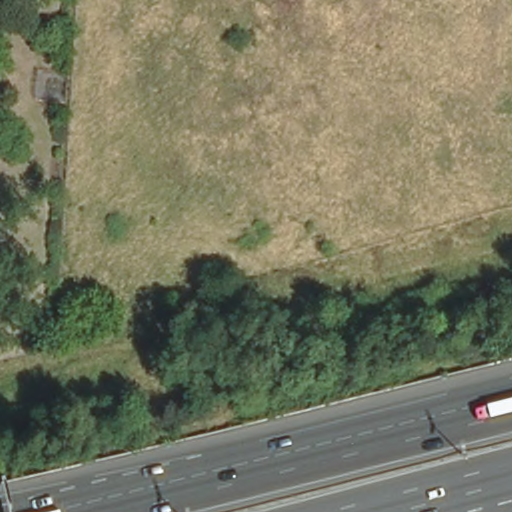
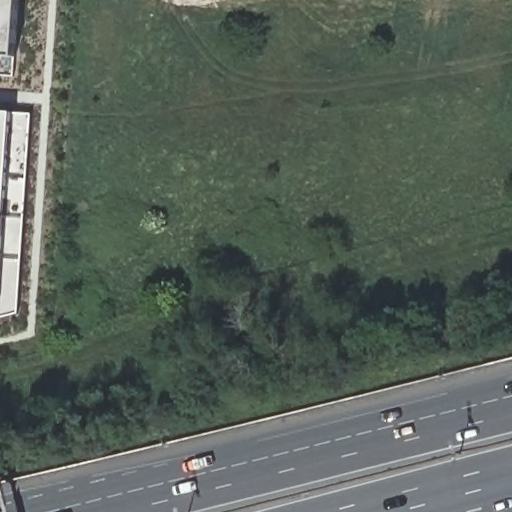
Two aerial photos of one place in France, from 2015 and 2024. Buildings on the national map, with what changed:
new [(0,64),(0,0),(21,0),(19,65),(0,64)]
new [(30,117),(18,312),(0,317),(0,115),(30,117)]

